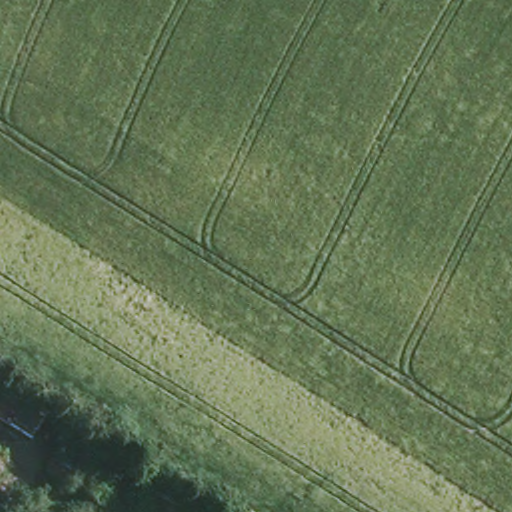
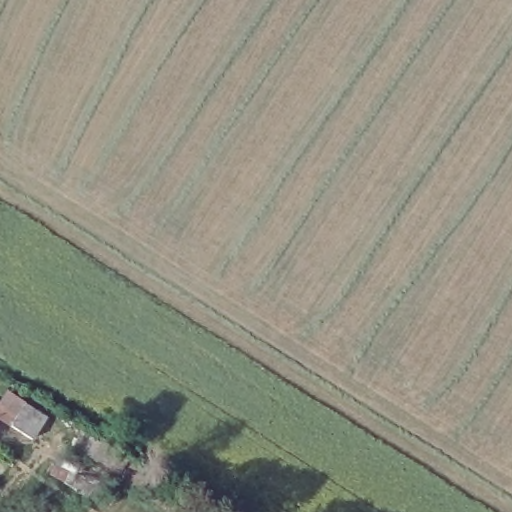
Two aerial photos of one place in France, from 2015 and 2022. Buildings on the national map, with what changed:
unchanged [(49,413),(37,434),(15,420),(28,400),(49,413)]
unchanged [(0,407),(1,408),(0,409),(0,407)]

